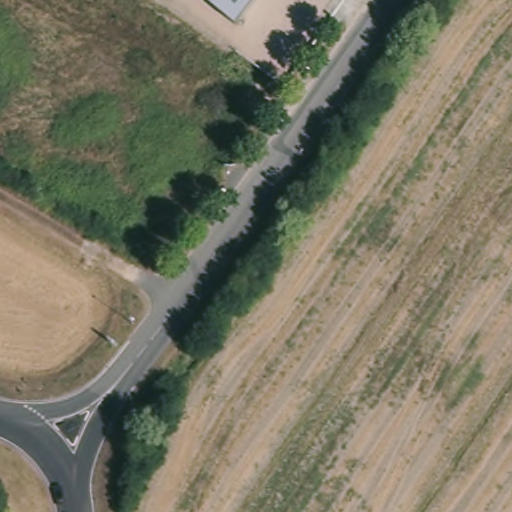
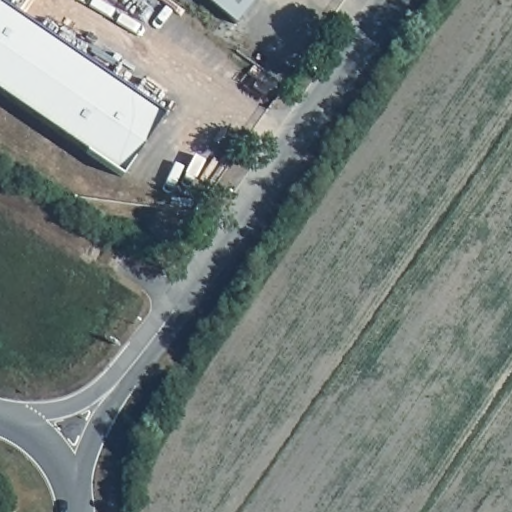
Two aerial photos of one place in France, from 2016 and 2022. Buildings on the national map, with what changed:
unchanged [(235,25),(205,0),(256,0),(235,25)]
new [(121,177),(0,95),(0,3),(164,114),(121,177)]

